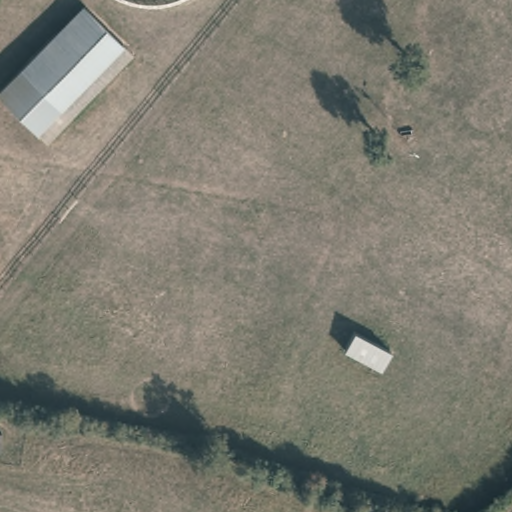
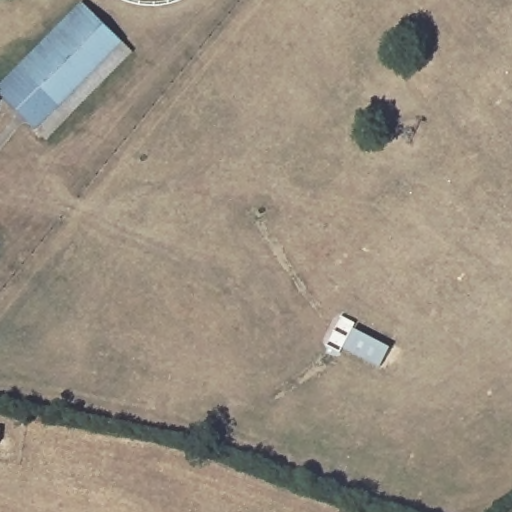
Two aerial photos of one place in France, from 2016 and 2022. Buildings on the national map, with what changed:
unchanged [(46,142),(0,95),(0,87),(82,5),(130,56),(46,142)]

